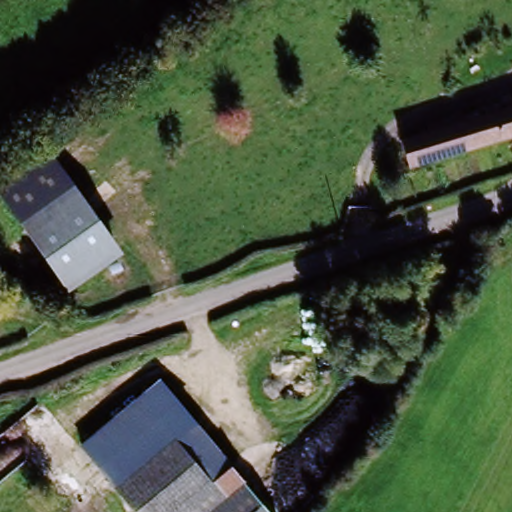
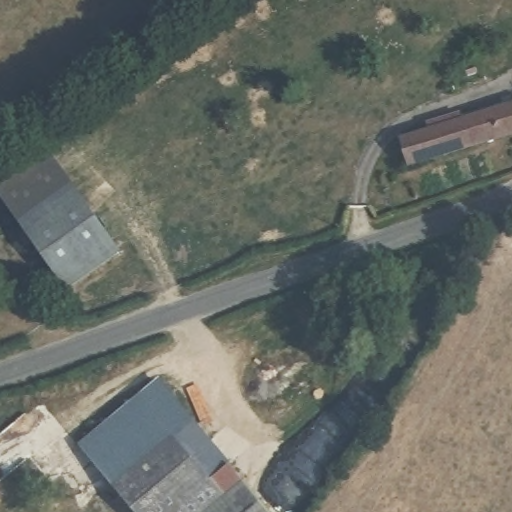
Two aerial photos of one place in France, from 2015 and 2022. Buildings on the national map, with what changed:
unchanged [(413,176),(403,149),(512,106),(512,135),(413,176)]
unchanged [(29,229),(2,194),(56,159),(75,188),(119,250),(69,286),(29,229)]
unchanged [(150,391),(177,426),(106,486),(77,453),(150,391)]
unchanged [(191,421),(259,506),(252,512),(129,512),(106,486),(177,426),(180,430),(191,421)]

